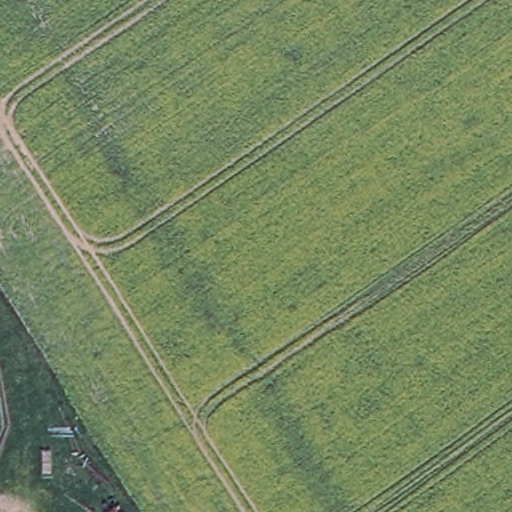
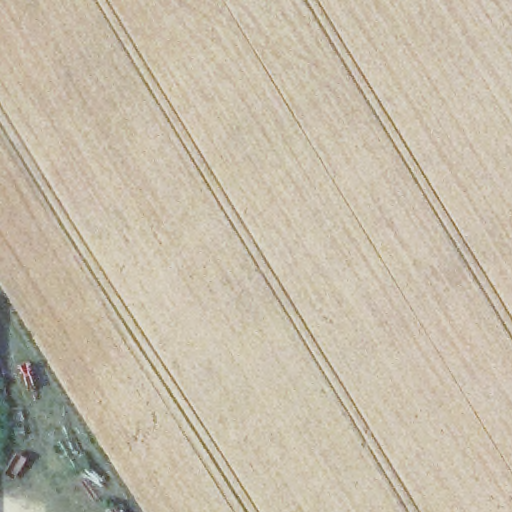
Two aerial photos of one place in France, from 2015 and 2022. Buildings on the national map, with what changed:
[]

